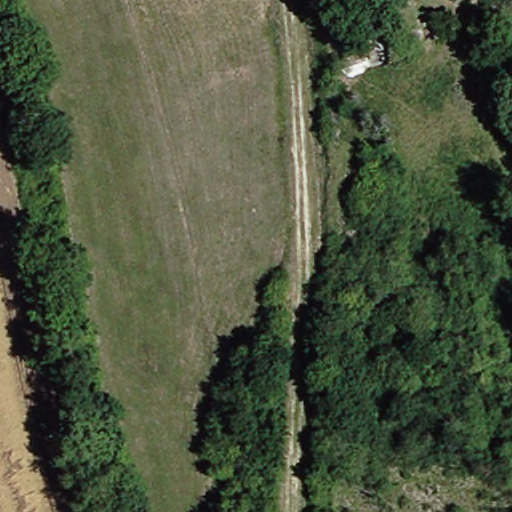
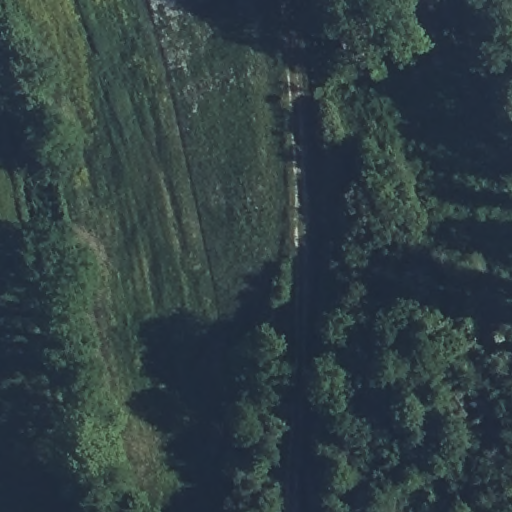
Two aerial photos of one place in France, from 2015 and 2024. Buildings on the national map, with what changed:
unchanged [(372,40),(345,51),(330,9),(352,0),(357,0),(372,40)]

